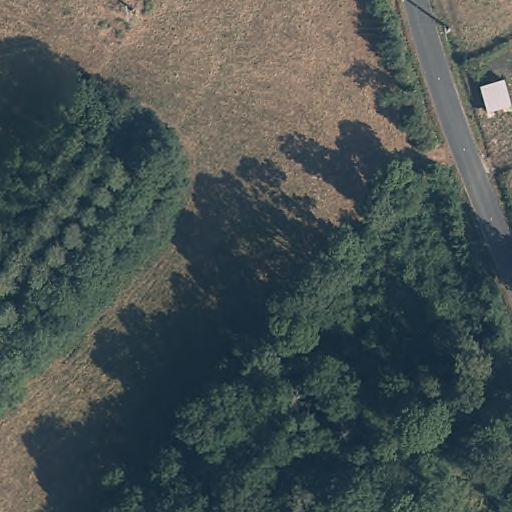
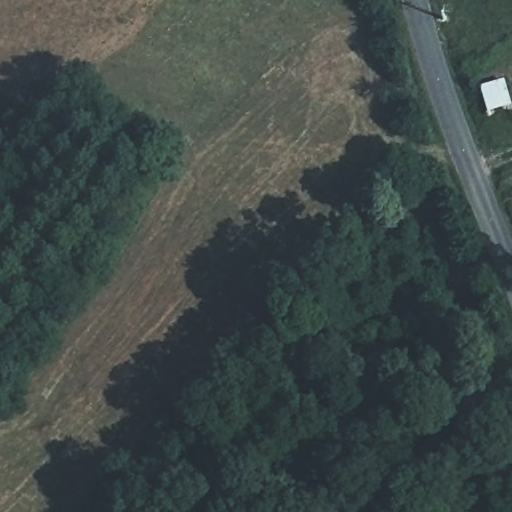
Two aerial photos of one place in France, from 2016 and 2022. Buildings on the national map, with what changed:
unchanged [(507,77),(512,93),(512,109),(488,114),(480,85),(507,77)]

